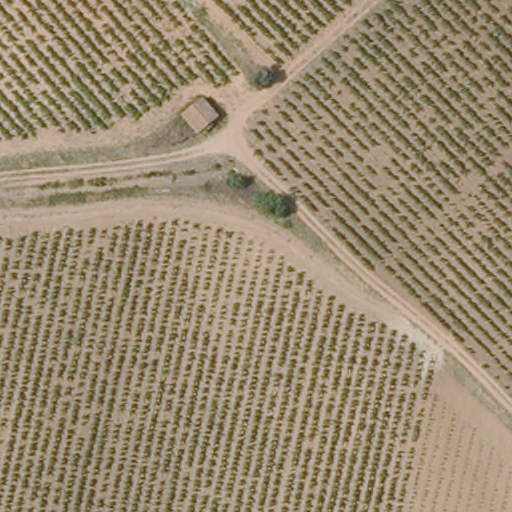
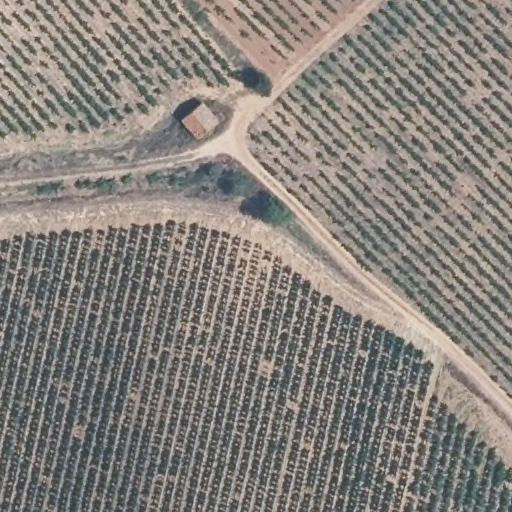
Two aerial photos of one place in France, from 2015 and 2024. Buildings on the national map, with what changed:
unchanged [(191,129),(178,115),(197,99),(214,117),(195,133),(191,129)]

